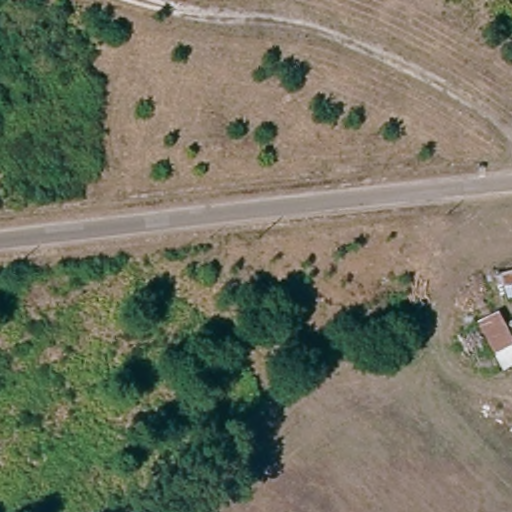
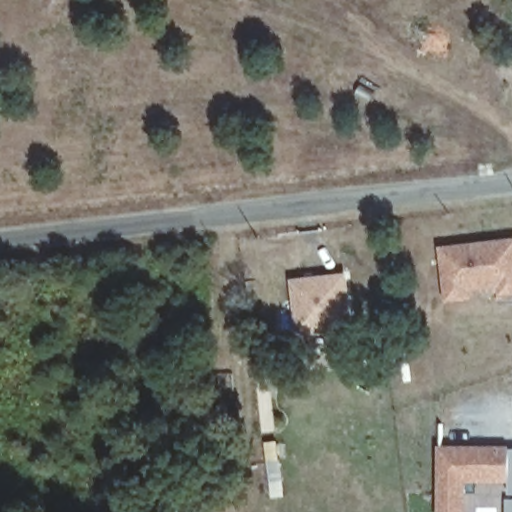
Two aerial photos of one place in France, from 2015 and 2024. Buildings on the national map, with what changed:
new [(499,296),(499,288),(471,290),(472,299),(445,302),(439,247),(512,236),(512,294),(499,296)]
new [(354,327),(296,334),(290,278),(347,272),(354,327)]
new [(511,482),(467,481),(465,512),(438,512),(438,445),(510,445),(510,448),(512,447),(512,492),(510,492),(511,482)]

